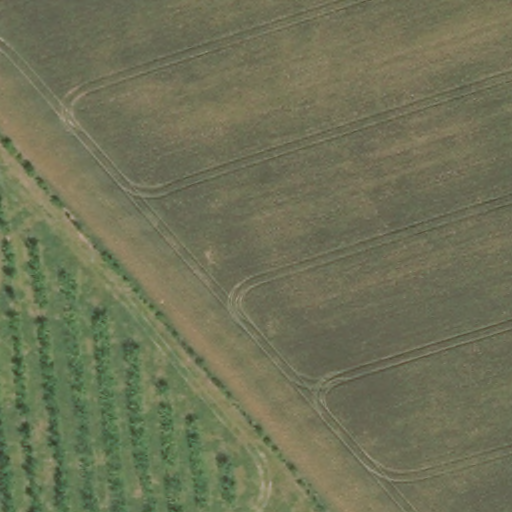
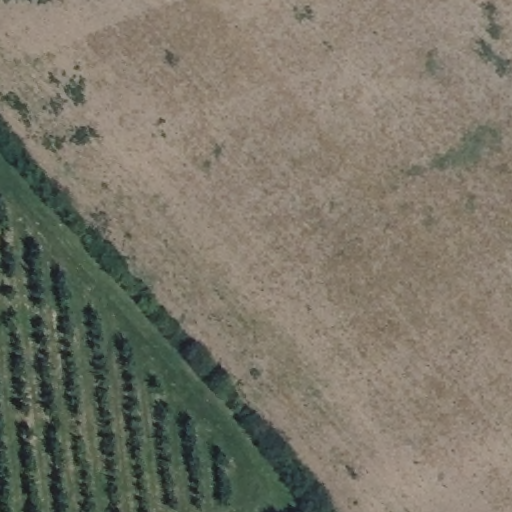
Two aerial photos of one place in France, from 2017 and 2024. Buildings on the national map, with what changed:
[]

